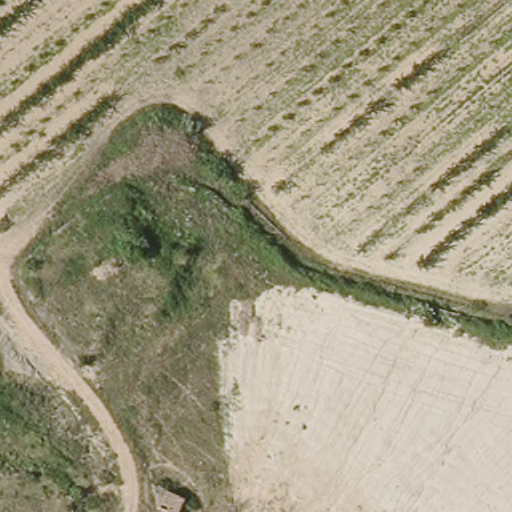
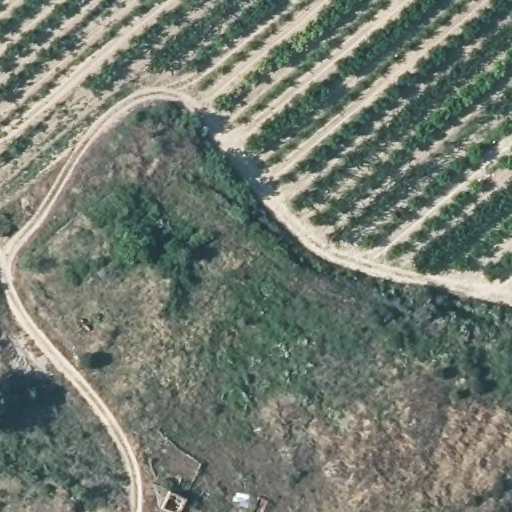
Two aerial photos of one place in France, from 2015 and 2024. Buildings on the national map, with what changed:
unchanged [(154,500),(159,482),(182,490),(177,506),(162,503),(154,500)]

